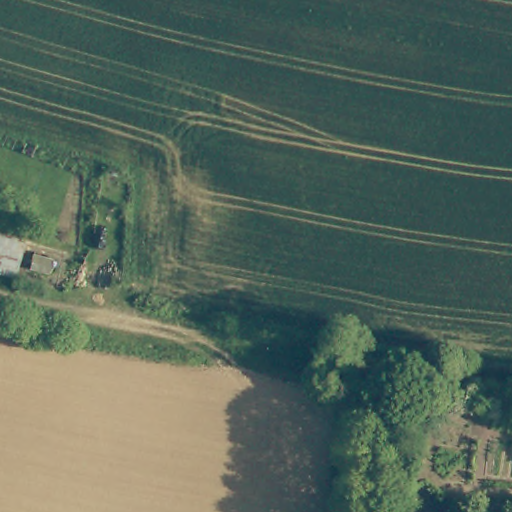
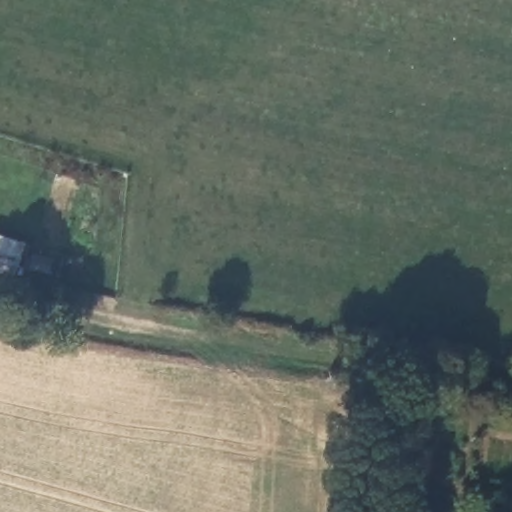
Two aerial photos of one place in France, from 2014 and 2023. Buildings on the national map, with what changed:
unchanged [(15,276),(0,272),(0,236),(25,243),(15,276)]

